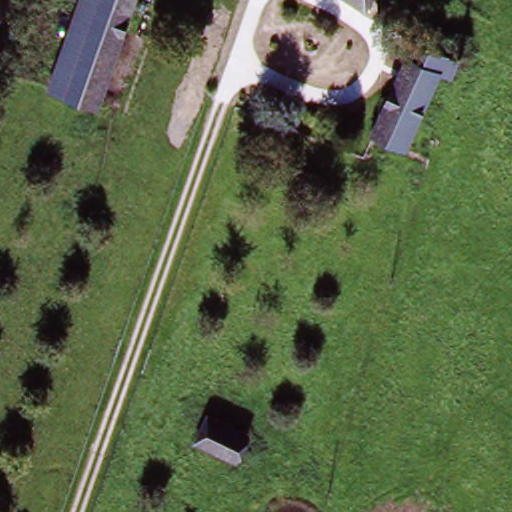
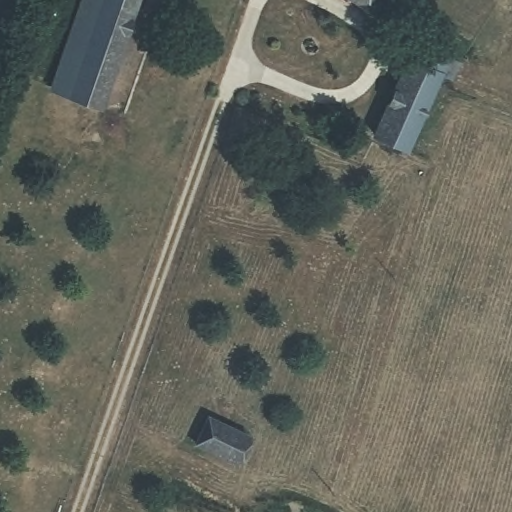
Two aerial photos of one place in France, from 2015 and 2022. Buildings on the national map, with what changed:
unchanged [(95,0),(138,0),(86,91),(55,71),(95,0)]
unchanged [(363,4),(357,0),(366,0),(363,4)]
unchanged [(379,128),(417,41),(444,54),(455,63),(450,75),(438,68),(407,142),(379,128)]
unchanged [(250,439),(235,462),(192,436),(207,411),(250,439)]

